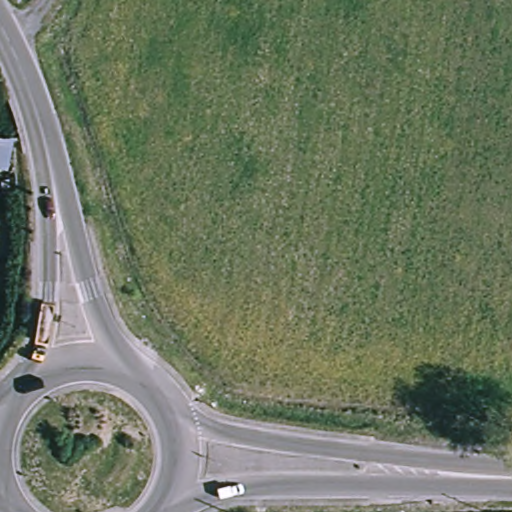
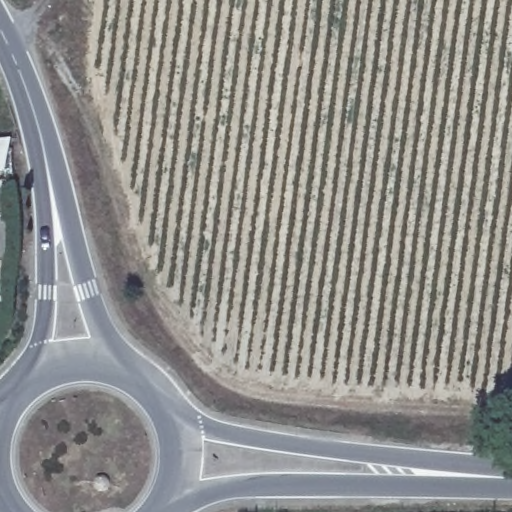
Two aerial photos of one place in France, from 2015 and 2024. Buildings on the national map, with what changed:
unchanged [(5,166),(0,165),(0,136),(11,135),(5,166)]

